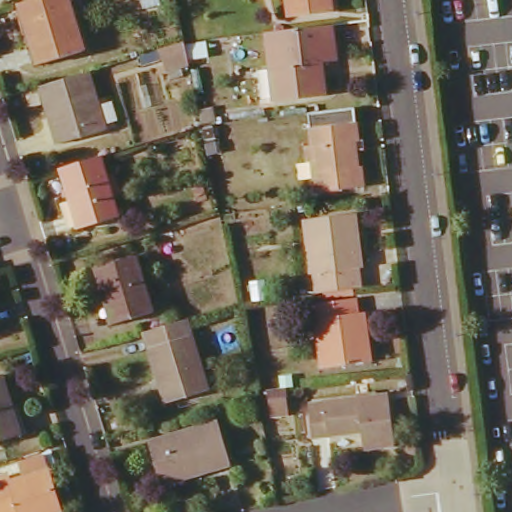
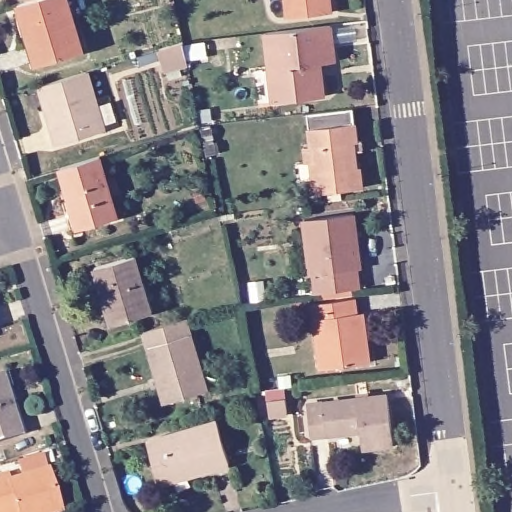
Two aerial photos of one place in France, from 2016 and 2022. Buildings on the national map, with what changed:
unchanged [(40,66),(29,27),(24,29),(17,7),(26,5),(42,0),(66,0),(82,54),(40,66)]
unchanged [(42,0),(26,5),(25,0),(42,0)]
unchanged [(330,0),(332,9),(288,16),(285,0),(330,0)]
unchanged [(264,36),(327,28),(332,62),(321,64),(324,96),(273,103),(264,36)]
unchanged [(158,53),(179,47),(184,69),(164,74),(158,53)]
unchanged [(41,85),(88,71),(105,131),(59,145),(41,85)]
unchanged [(305,111),(351,104),(357,135),(352,136),(355,164),(361,163),(365,183),(315,191),(310,161),(302,162),(300,146),(311,143),(305,111)]
unchanged [(58,169),(99,157),(117,217),(77,229),(58,169)]
unchanged [(307,222),(350,216),(358,267),(354,268),(357,285),(320,290),(317,275),(315,274),(307,222)]
unchanged [(107,300),(103,300),(94,271),(134,258),(151,311),(113,321),(107,300)]
unchanged [(261,278),(264,297),(252,299),(250,300),(248,281),(261,278)]
unchanged [(313,311),(354,305),(359,338),(363,340),(366,365),(321,371),(313,311)]
unchanged [(142,335),(180,323),(201,392),(163,403),(142,335)]
unchanged [(20,435),(0,441),(0,376),(20,435)]
unchanged [(310,408),(389,396),(397,443),(365,449),(361,433),(315,439),(310,408)]
unchanged [(266,401),(288,397),(291,412),(268,417),(266,401)]
unchanged [(148,444),(216,426),(225,465),(157,483),(148,444)]
unchanged [(22,465),(42,459),(45,470),(24,477),(22,465)]
unchanged [(9,478),(11,486),(51,473),(64,512),(0,512),(0,482),(9,478)]

